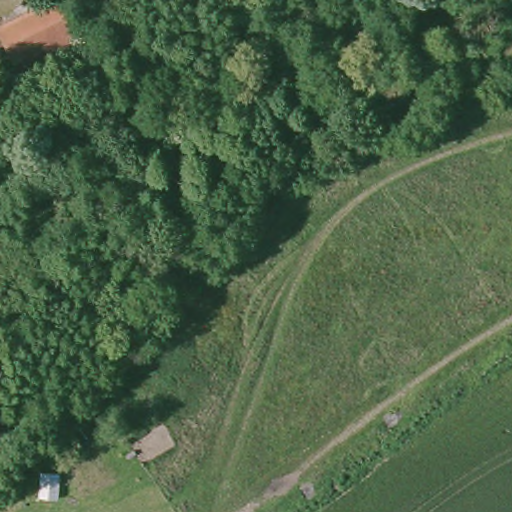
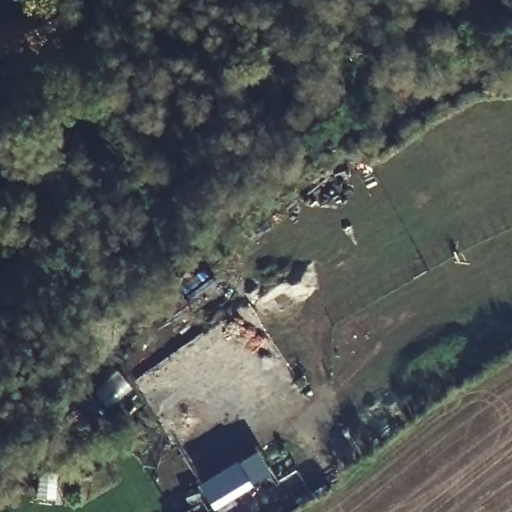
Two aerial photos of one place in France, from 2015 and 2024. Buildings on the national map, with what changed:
unchanged [(54,0),(75,32),(19,65),(10,71),(0,55),(0,24),(40,0),(54,0)]
new [(200,483),(237,460),(240,463),(255,454),(257,457),(262,454),(272,470),(214,506),(200,483)]

